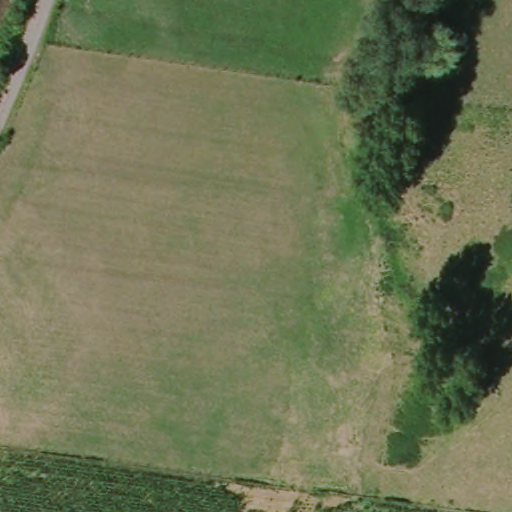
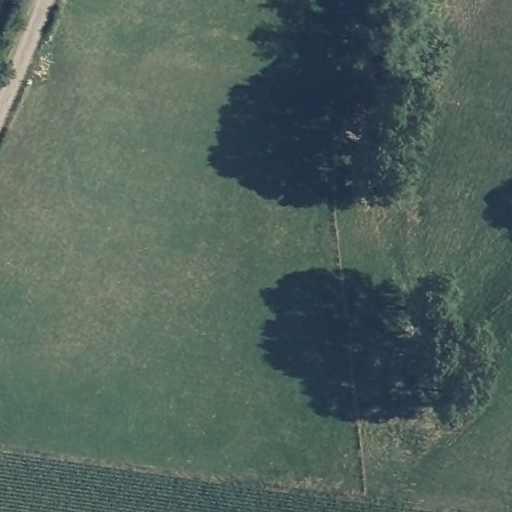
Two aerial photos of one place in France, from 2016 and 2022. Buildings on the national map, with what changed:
[]

